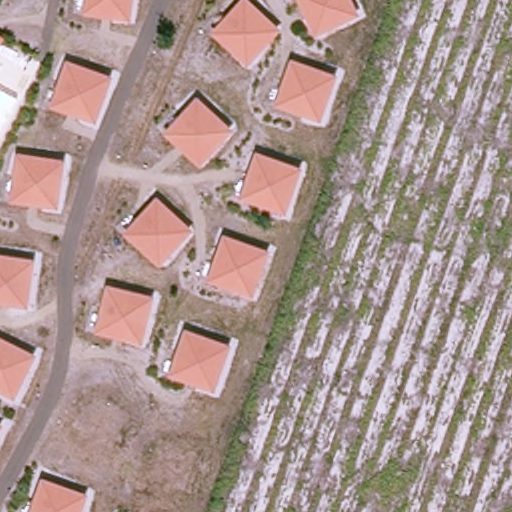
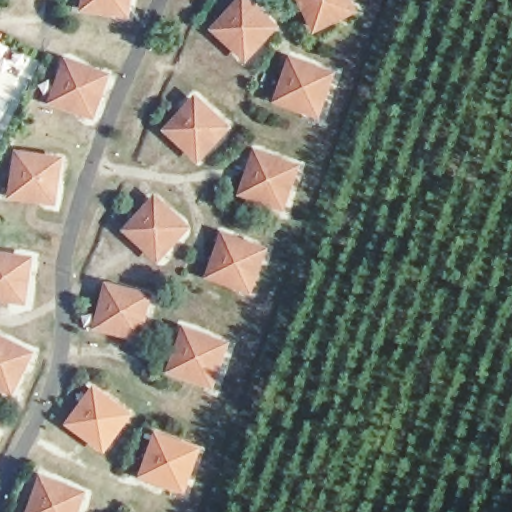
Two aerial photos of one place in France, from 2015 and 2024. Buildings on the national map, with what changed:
unchanged [(86,0),(127,0),(125,16),(85,10),(86,0)]
unchanged [(320,30),(306,0),(350,0),(356,13),(320,30)]
unchanged [(272,29),(245,59),(216,31),(243,1),(272,29)]
unchanged [(330,76),(316,115),(278,101),(291,64),(330,76)]
unchanged [(53,103),(67,65),(105,79),(91,116),(53,103)]
unchanged [(225,129),(198,159),(168,131),(196,102),(225,129)]
unchanged [(294,169),(281,207),(242,194),(256,156),(294,169)]
unchanged [(12,197),(19,157),(58,163),(52,203),(12,197)]
unchanged [(128,232),(155,202),(185,229),(157,259),(128,232)]
unchanged [(215,276),(229,239),(266,252),(252,290),(215,276)]
unchanged [(22,302),(0,299),(0,258),(27,263),(22,302)]
unchanged [(98,328),(108,289),(147,299),(137,338),(98,328)]
unchanged [(171,372),(185,334),(222,347),(209,385),(171,372)]
unchanged [(0,339),(32,355),(15,391),(0,384),(0,339)]
new [(66,425),(95,388),(132,416),(105,453),(66,425)]
demolished [(136,412),(112,444),(80,420),(104,388),(136,412)]
new [(141,478),(156,433),(201,448),(185,494),(141,478)]
demolished [(205,447),(191,485),(154,472),(167,434),(205,447)]
unchanged [(81,496),(75,512),(32,512),(42,482),(81,496)]

